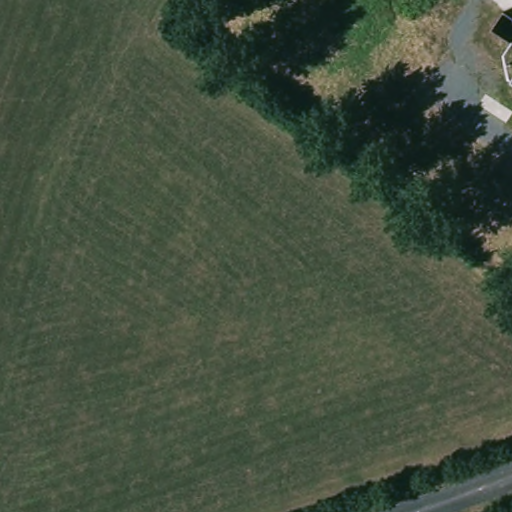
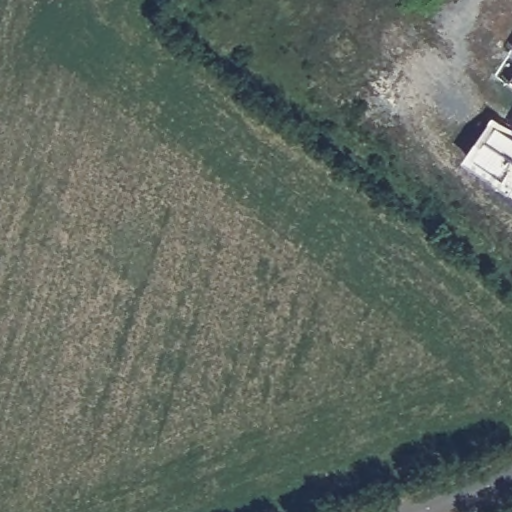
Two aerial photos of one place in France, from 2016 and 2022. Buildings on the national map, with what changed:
unchanged [(507,10),(512,13),(512,40),(492,28),(507,10)]
new [(512,188),(473,162),(497,125),(512,135),(512,188)]

